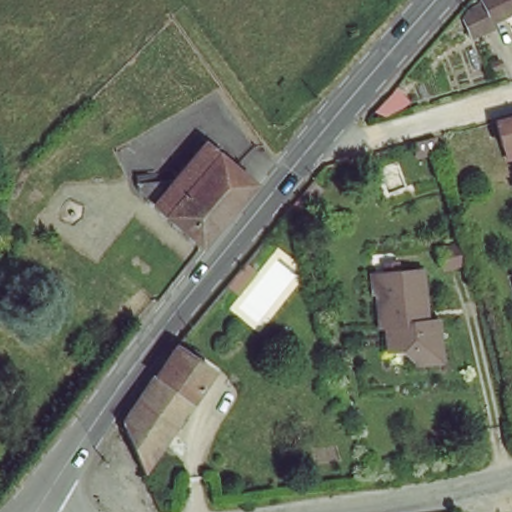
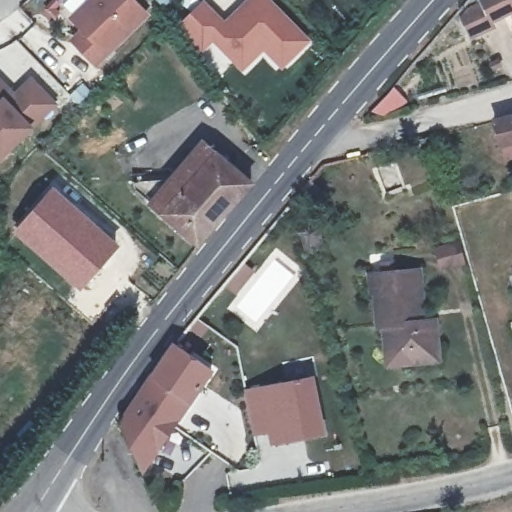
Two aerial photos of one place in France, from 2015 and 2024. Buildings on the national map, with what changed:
unchanged [(95,0),(125,0),(144,20),(93,69),(74,49),(85,39),(70,23),(95,0)]
new [(201,0),(206,0),(224,18),(243,0),(271,0),(310,40),(281,70),(263,51),(240,72),(212,42),(198,55),(177,25),(201,0)]
unchanged [(481,37),(470,14),(484,8),(482,1),(484,0),(512,0),(512,14),(492,24),(494,30),(481,37)]
new [(31,75),(58,104),(33,127),(0,159),(0,76),(14,91),(31,75)]
unchanged [(497,155),(492,130),(512,125),(512,151),(497,155)]
unchanged [(139,196),(136,187),(141,186),(140,178),(171,175),(175,182),(205,147),(253,188),(199,246),(139,196)]
new [(51,186),(116,245),(79,289),(13,230),(51,186)]
unchanged [(426,328),(434,326),(439,366),(414,369),(412,359),(406,353),(386,357),(384,332),(379,332),(376,301),(371,300),(369,282),(396,278),(419,276),(421,293),(424,316),(426,328)]
unchanged [(124,428),(173,352),(176,349),(212,374),(191,406),(193,410),(190,414),(186,413),(159,451),(143,475),(123,429),(124,428)]
new [(252,432),(243,390),(309,377),(321,431),(287,438),(271,441),(268,429),(284,425),(252,432)]

